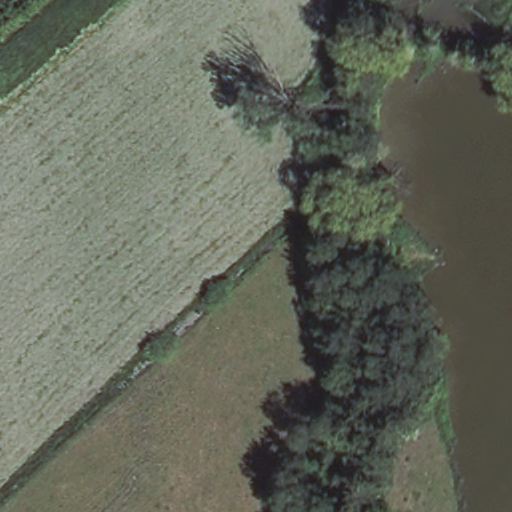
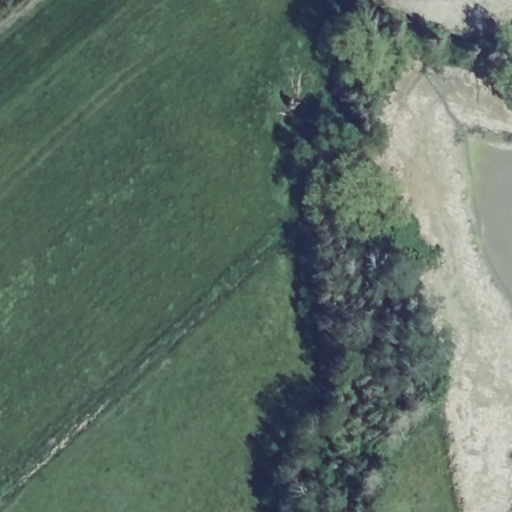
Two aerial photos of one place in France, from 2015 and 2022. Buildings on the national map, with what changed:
unchanged [(398,238),(392,288),(354,283),(358,233),(398,238)]

